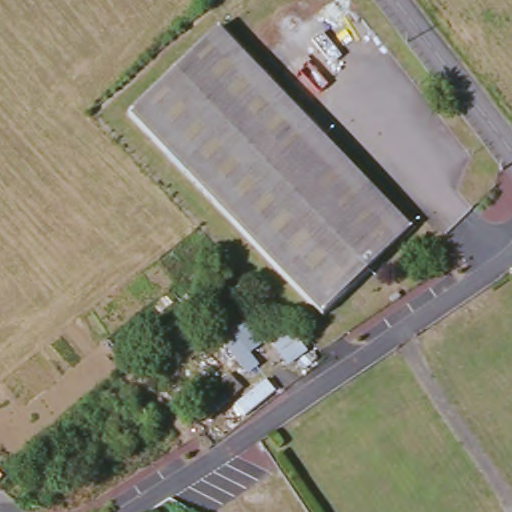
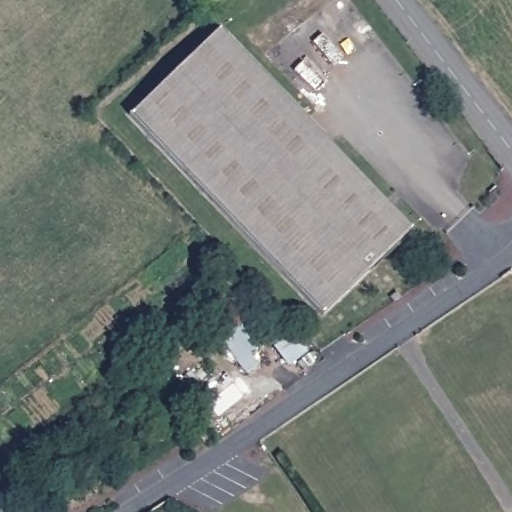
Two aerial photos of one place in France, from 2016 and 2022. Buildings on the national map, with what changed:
unchanged [(128,119),(217,33),(411,234),(322,320),(128,119)]
unchanged [(266,345),(252,354),(261,368),(248,377),(223,339),(250,320),(266,345)]

